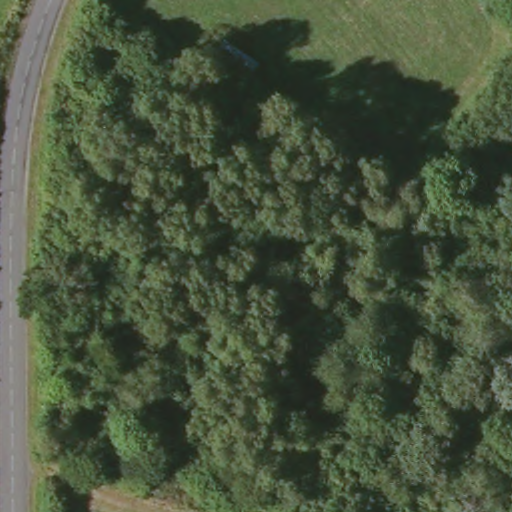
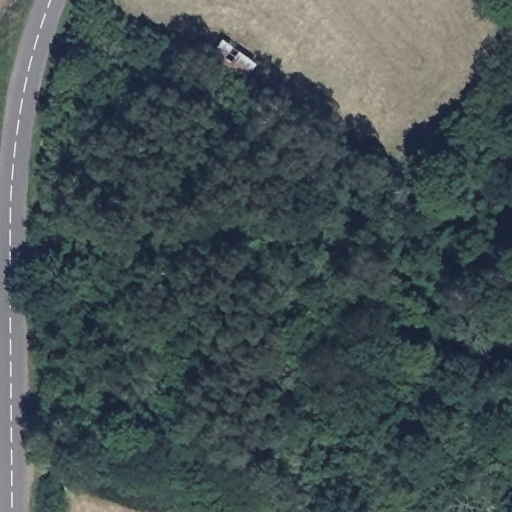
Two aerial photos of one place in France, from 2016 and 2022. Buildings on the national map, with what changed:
unchanged [(210,60),(224,35),(259,61),(248,78),(210,60)]

